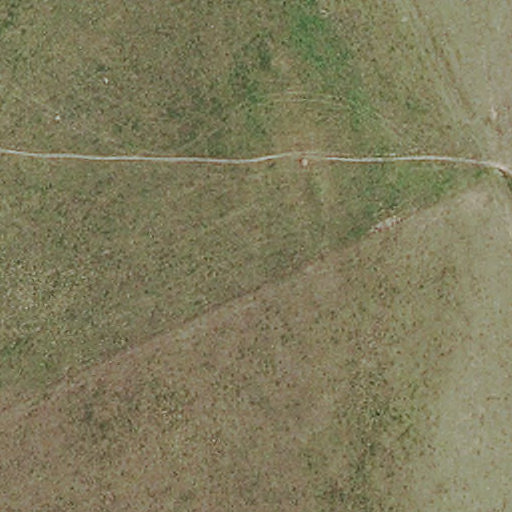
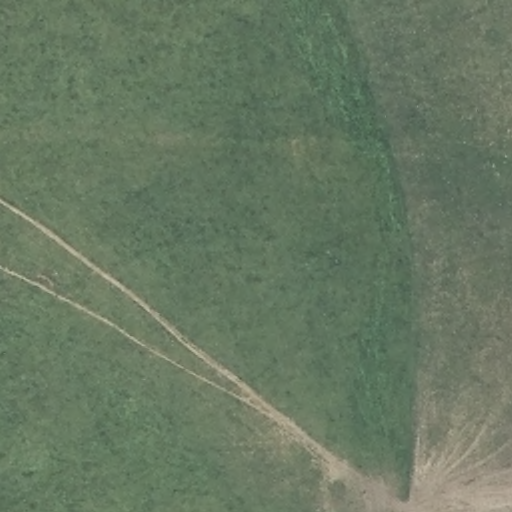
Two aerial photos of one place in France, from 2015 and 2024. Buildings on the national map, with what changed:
[]

